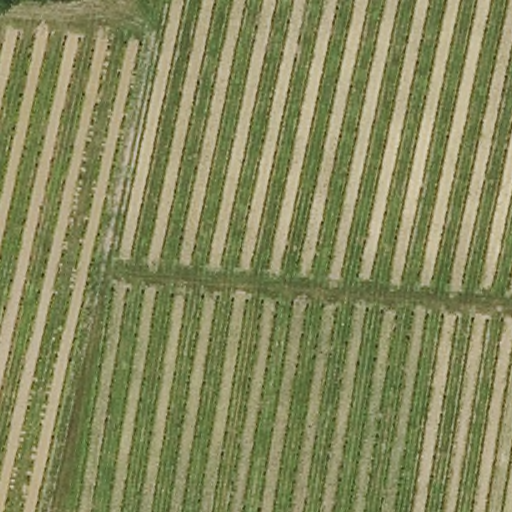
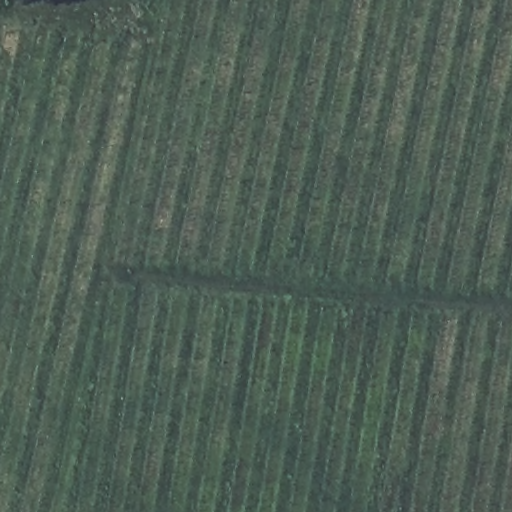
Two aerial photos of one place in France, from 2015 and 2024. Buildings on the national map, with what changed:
[]

